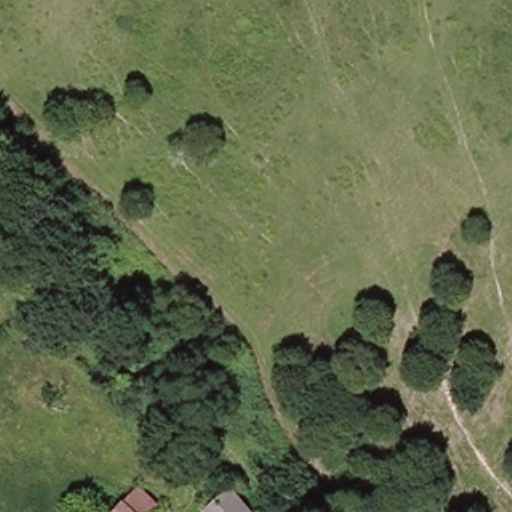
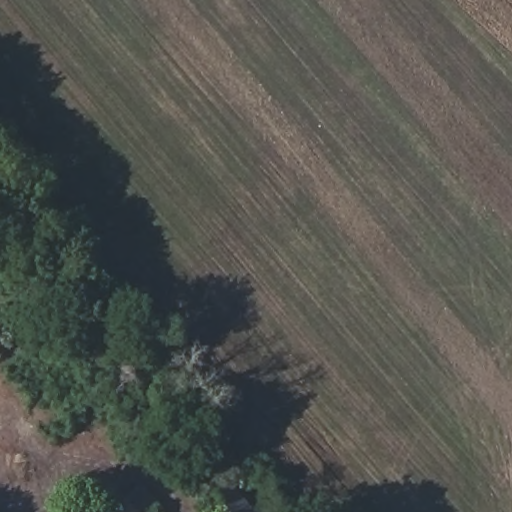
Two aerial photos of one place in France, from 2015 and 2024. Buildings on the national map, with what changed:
unchanged [(255,512),(207,512),(206,509),(239,488),(255,512)]
unchanged [(156,511),(156,512),(120,512),(137,492),(156,511)]

